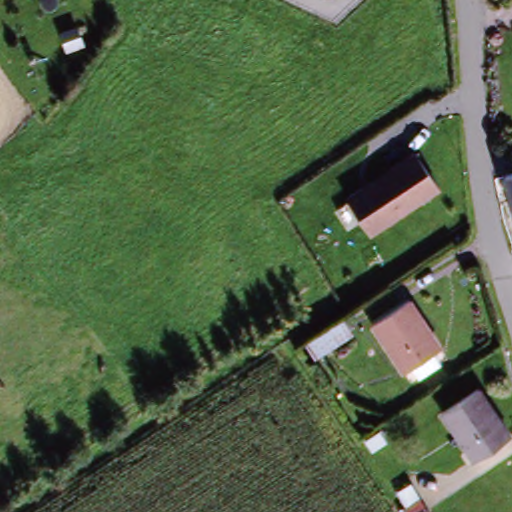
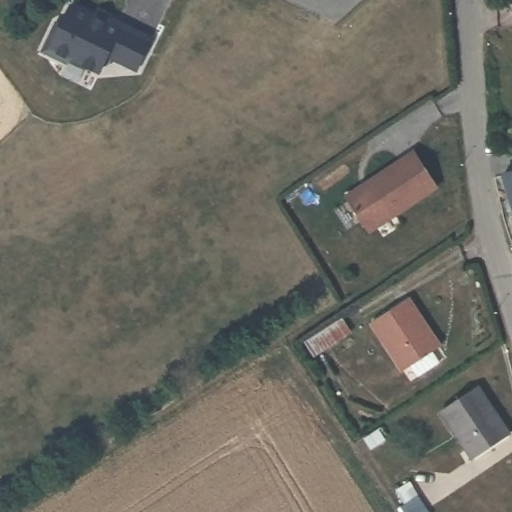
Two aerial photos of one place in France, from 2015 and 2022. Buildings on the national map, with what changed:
new [(110,21),(113,16),(155,39),(137,73),(110,57),(100,76),(68,59),(66,64),(40,51),(55,21),(63,21),(70,3),(110,21)]
unchanged [(350,199),(419,155),(442,190),(372,234),(350,199)]
unchanged [(507,175),(512,174),(512,206),(507,175)]
unchanged [(406,296),(442,344),(437,348),(444,358),(424,373),(417,363),(410,368),(375,322),(406,296)]
unchanged [(475,382),(480,386),(512,432),(512,443),(483,464),(445,405),(475,382)]

